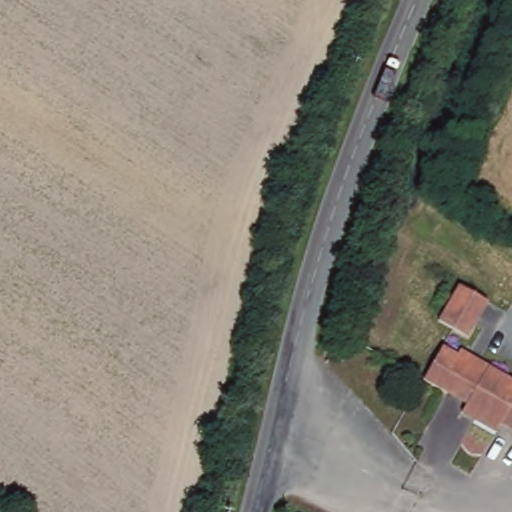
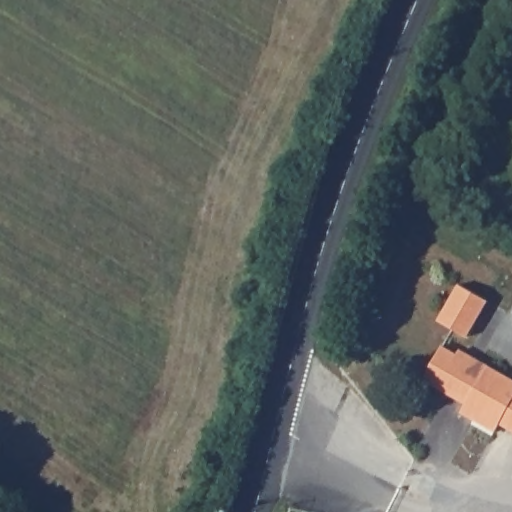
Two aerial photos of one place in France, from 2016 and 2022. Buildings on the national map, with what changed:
unchanged [(491,301),(470,335),(443,320),(464,284),(491,301)]
unchanged [(500,431),(480,421),(478,420),(466,414),(472,400),(453,389),(450,393),(427,380),(447,345),(463,355),(466,349),(492,365),(512,376),(512,425),(506,422),(500,431)]

